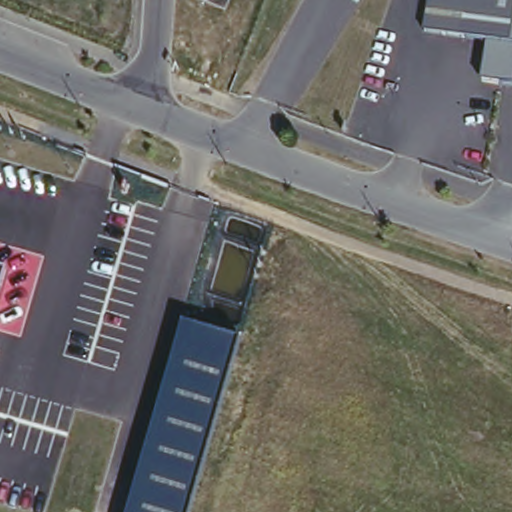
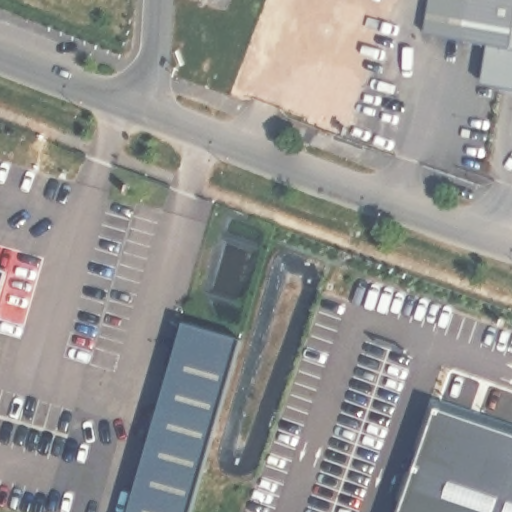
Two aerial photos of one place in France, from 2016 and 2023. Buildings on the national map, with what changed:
unchanged [(423,33),(428,0),(512,0),(512,86),(480,81),(485,42),(423,33)]
unchanged [(7,270),(0,294),(0,268),(7,270)]
unchanged [(183,324),(240,339),(189,512),(129,512),(183,324)]
new [(512,448),(512,512),(391,512),(423,418),(512,448)]

